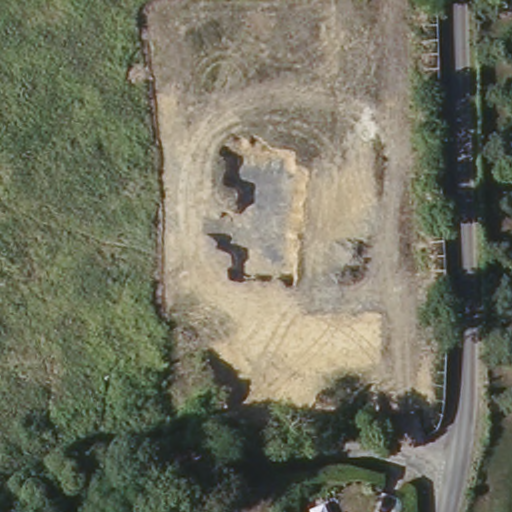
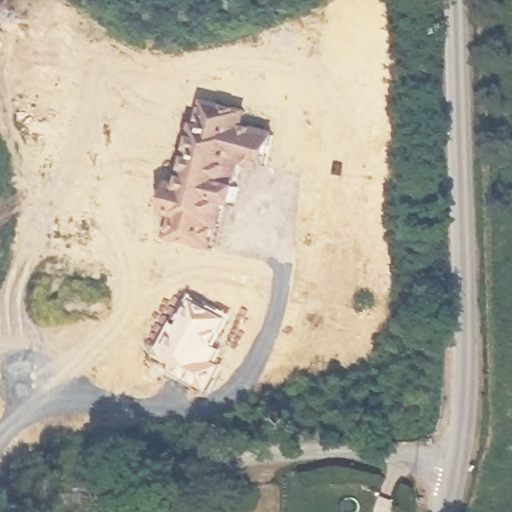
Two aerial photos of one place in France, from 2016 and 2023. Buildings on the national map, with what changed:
new [(200,123),(206,98),(244,108),(240,123),(272,131),(264,161),(241,155),(234,182),(238,183),(234,198),(224,196),(218,220),(215,219),(209,242),(170,232),(176,209),(164,206),(171,180),(182,183),(174,181),(189,121),(197,123),(197,122),(200,123)]
new [(215,346),(208,358),(216,362),(203,385),(168,365),(173,356),(155,346),(170,319),(178,324),(192,297),(223,315),(208,342),(215,346)]

